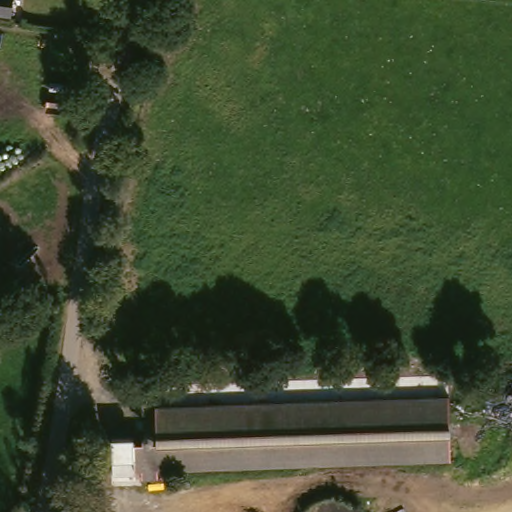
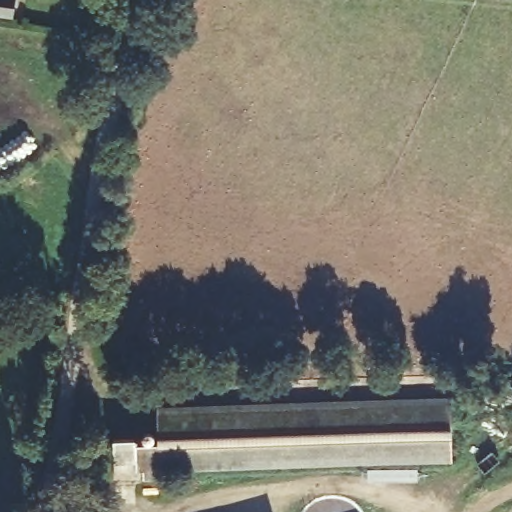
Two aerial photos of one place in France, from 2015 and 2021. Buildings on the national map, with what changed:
unchanged [(0,11),(0,0),(14,0),(12,13),(0,11)]
unchanged [(457,453),(141,468),(139,439),(164,437),(161,410),(456,398),(457,453)]

